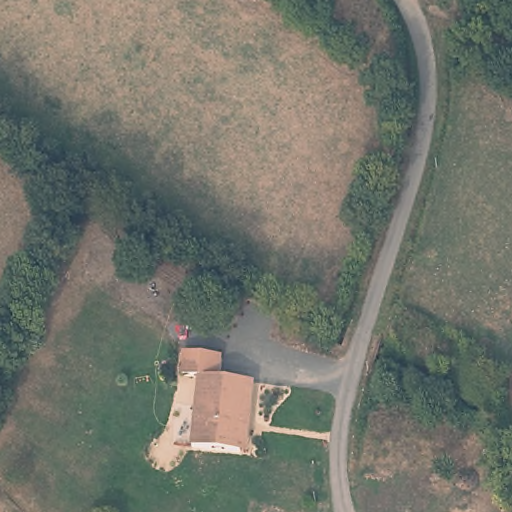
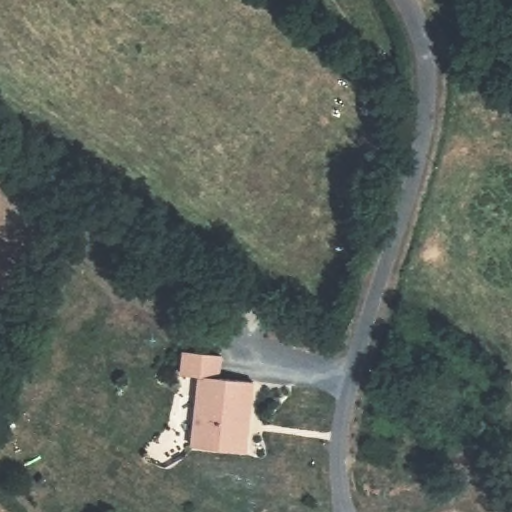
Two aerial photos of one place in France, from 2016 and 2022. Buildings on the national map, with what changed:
unchanged [(198,446),(200,375),(187,375),(188,355),(220,356),(220,380),(255,381),(254,422),(244,422),(244,450),(198,446)]

